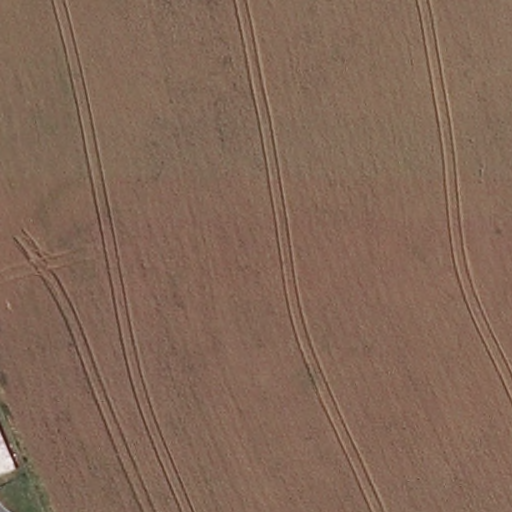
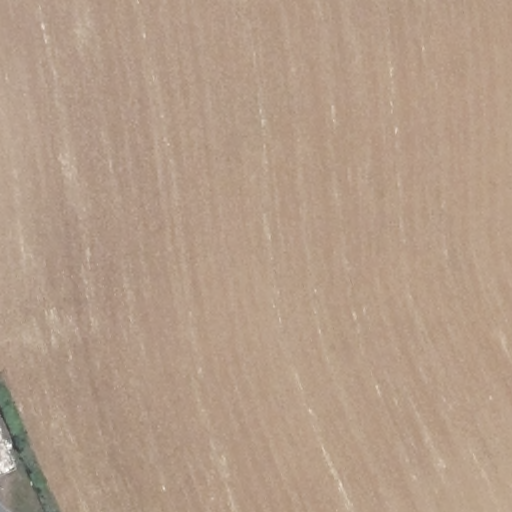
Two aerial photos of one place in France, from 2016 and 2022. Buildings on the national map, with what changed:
[]

